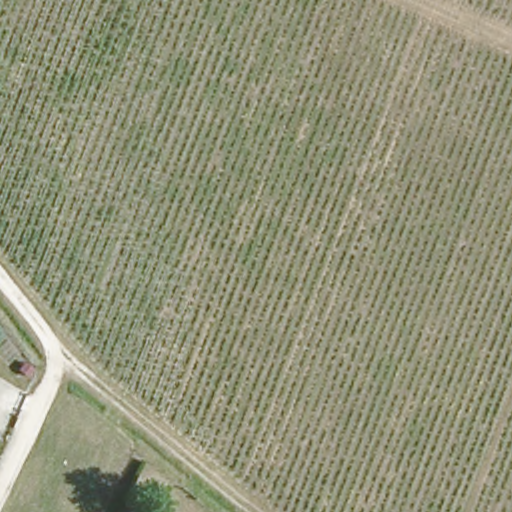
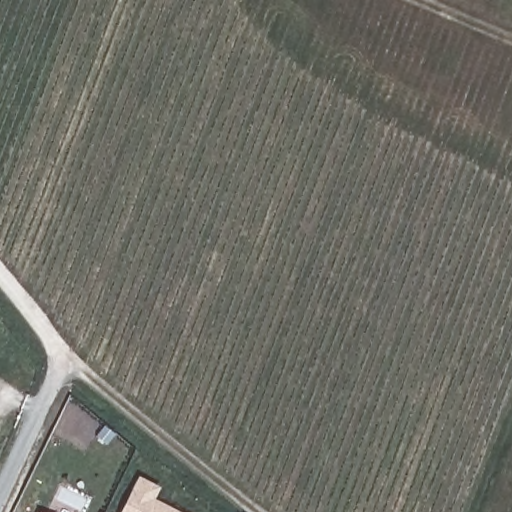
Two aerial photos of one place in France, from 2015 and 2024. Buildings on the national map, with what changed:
new [(153,497),(182,512),(121,512),(139,476),(159,486),(153,497)]

